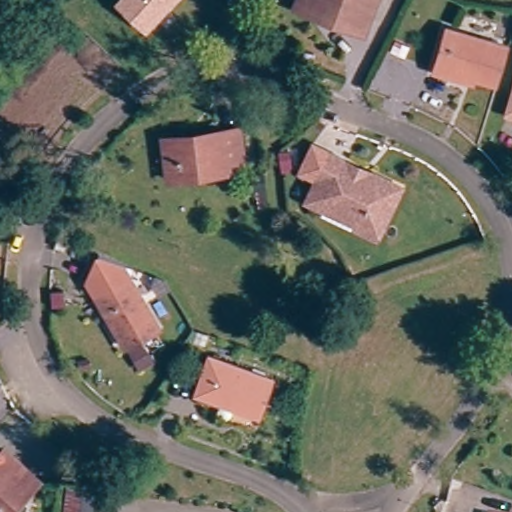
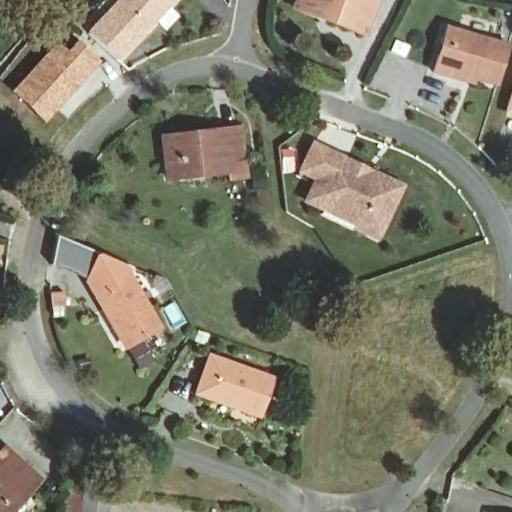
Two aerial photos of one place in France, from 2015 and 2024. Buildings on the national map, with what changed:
new [(120,64),(88,35),(121,0),(180,0),(120,64)]
demolished [(152,41),(124,13),(137,0),(192,0),(152,41)]
unchanged [(374,3),(354,37),(328,22),(291,0),(368,0),(374,3)]
unchanged [(443,77),(436,74),(448,33),(509,49),(498,87),(477,80),(471,88),(443,77)]
new [(55,41),(64,49),(75,39),(103,66),(84,87),(44,124),(9,91),(55,41)]
unchanged [(502,118),(512,85),(512,122),(502,118)]
unchanged [(228,160),(229,171),(170,177),(164,134),(193,130),(239,124),(244,159),(228,160)]
unchanged [(296,142),(291,136),(299,131),(303,137),(296,142)]
unchanged [(320,215),(324,210),(307,200),(319,179),(304,170),(318,145),(351,163),(373,177),(403,194),(374,243),(354,231),(353,233),(320,215)]
unchanged [(297,173),(287,174),(286,160),(296,159),(297,173)]
unchanged [(124,272),(130,274),(127,283),(158,331),(126,352),(86,288),(96,261),(124,272)]
unchanged [(144,347),(154,364),(143,371),(132,355),(144,347)]
unchanged [(203,377),(210,359),(272,381),(256,416),(214,401),(195,394),(203,377)]
unchanged [(11,512),(0,512),(0,463),(7,455),(34,486),(11,512)]
unchanged [(109,494),(107,512),(60,512),(63,486),(109,494)]

